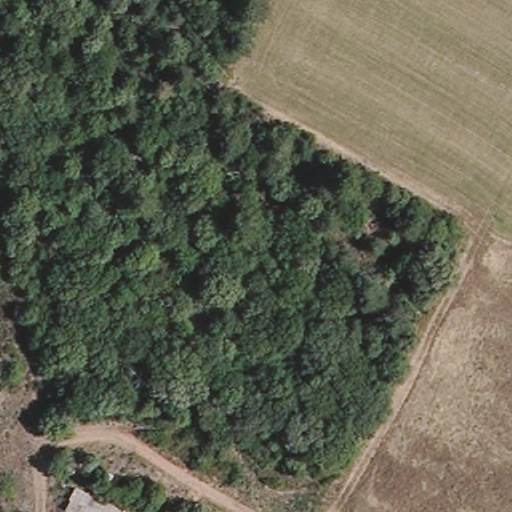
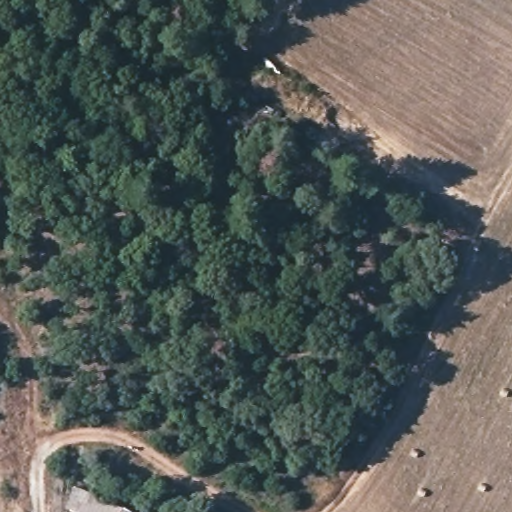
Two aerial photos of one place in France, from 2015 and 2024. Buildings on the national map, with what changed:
unchanged [(77,486),(124,508),(122,512),(74,512),(67,508),(77,486)]

